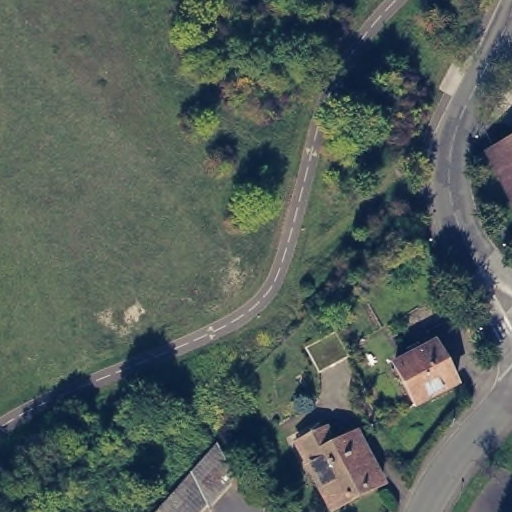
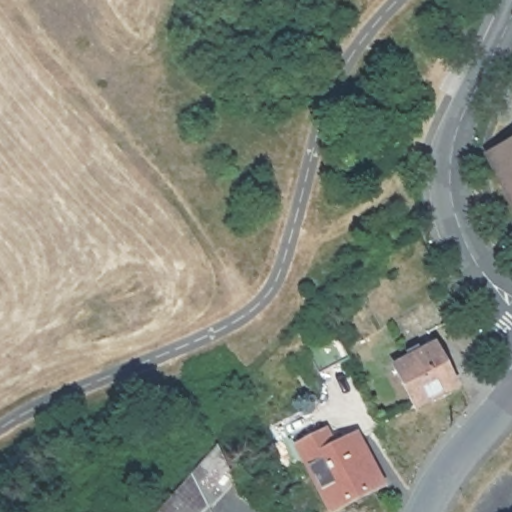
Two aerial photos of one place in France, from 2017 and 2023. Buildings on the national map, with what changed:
unchanged [(491,150),(512,138),(512,190),(491,150)]
unchanged [(399,362),(441,341),(461,380),(419,402),(399,362)]
unchanged [(355,371),(325,386),(313,361),(342,346),(355,371)]
unchanged [(371,485),(322,511),(288,446),(315,432),(324,450),(346,437),(347,438),(371,485)]
unchanged [(234,480),(209,507),(207,505),(200,512),(156,512),(216,445),(234,480)]

